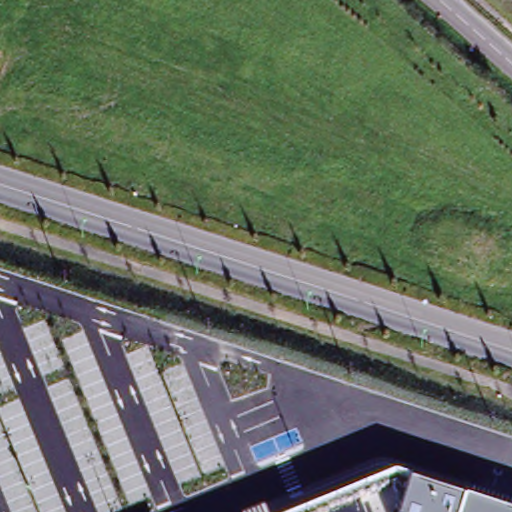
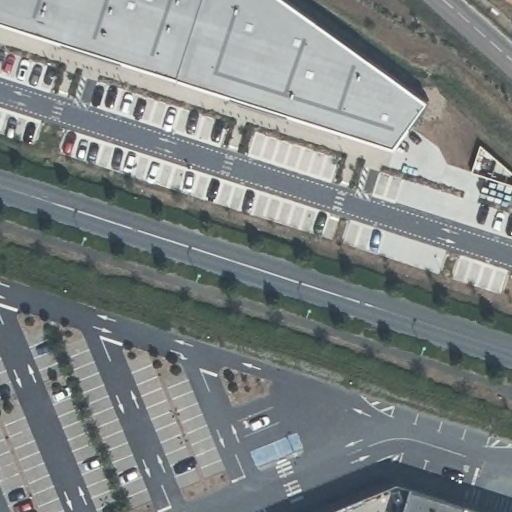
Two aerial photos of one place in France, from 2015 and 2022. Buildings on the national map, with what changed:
new [(427,101),(394,147),(176,75),(0,19),(0,0),(288,0),(427,101)]
unchanged [(499,512),(403,512),(410,485),(499,512)]

